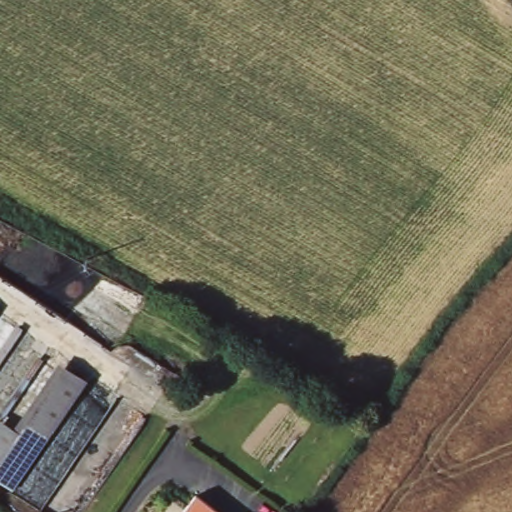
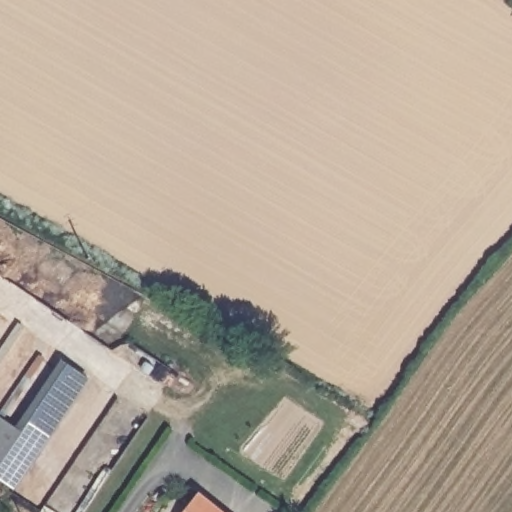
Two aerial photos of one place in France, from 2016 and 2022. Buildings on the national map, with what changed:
unchanged [(0,417),(16,426),(60,355),(88,371),(20,484),(0,472),(0,417)]
unchanged [(219,512),(186,512),(199,496),(219,512)]

